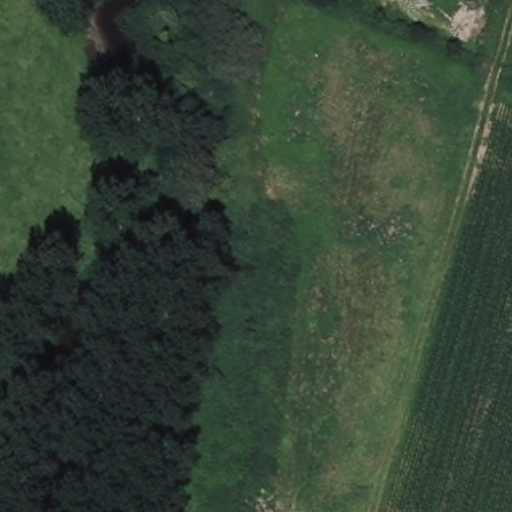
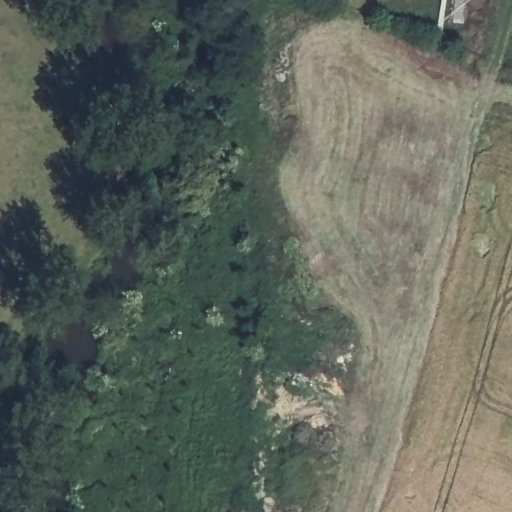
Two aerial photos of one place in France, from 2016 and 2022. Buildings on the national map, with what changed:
[]

